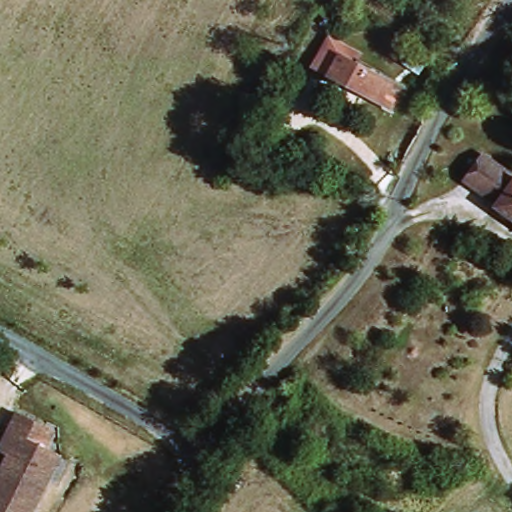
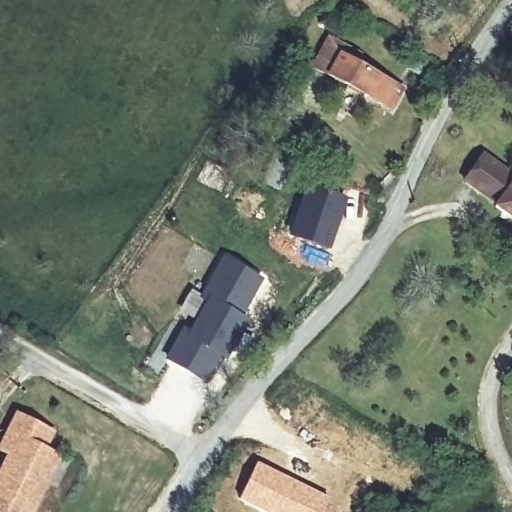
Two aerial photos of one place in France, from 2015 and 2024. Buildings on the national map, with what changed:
unchanged [(367,82),(388,89),(387,101),(380,101),(311,72),(325,31),(357,45),(355,56),(375,62),(367,82)]
unchanged [(488,202),(460,180),(483,151),(512,172),(488,202)]
new [(270,157),(290,165),(280,190),(260,182),(270,157)]
unchanged [(512,180),(512,225),(490,209),(512,180)]
new [(307,182),(349,196),(344,216),(330,249),(287,233),(307,182)]
new [(182,335),(190,338),(208,304),(205,303),(227,264),(259,282),(238,319),(245,323),(225,359),(218,355),(203,383),(167,363),(182,335)]
unchanged [(21,440),(14,436),(23,417),(60,435),(51,451),(58,455),(65,459),(51,486),(38,512),(0,512),(0,483),(21,440)]
new [(331,498),(324,512),(264,512),(237,499),(256,460),(331,498)]

